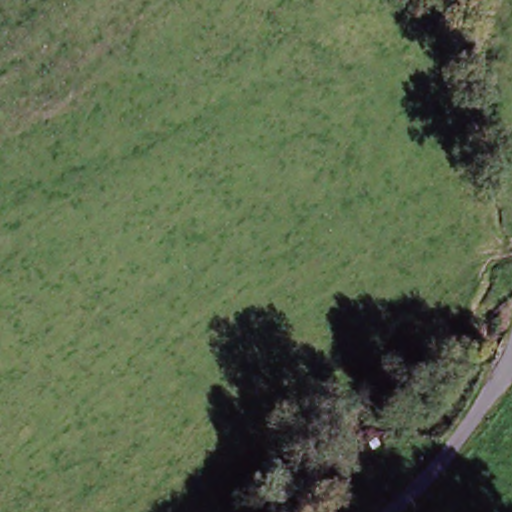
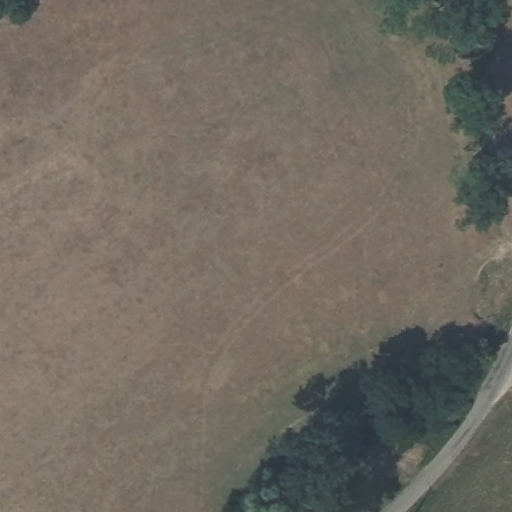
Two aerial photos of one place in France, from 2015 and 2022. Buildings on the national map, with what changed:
[]

